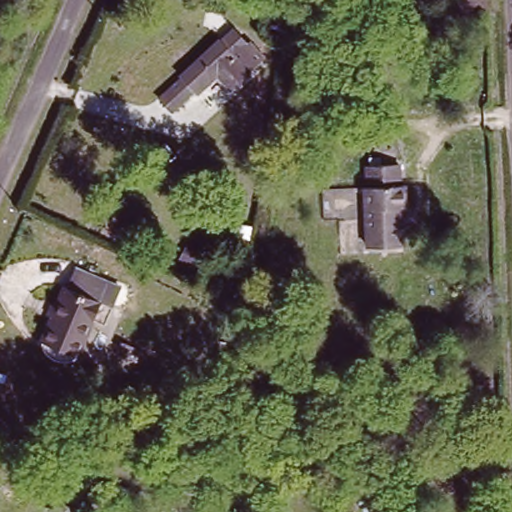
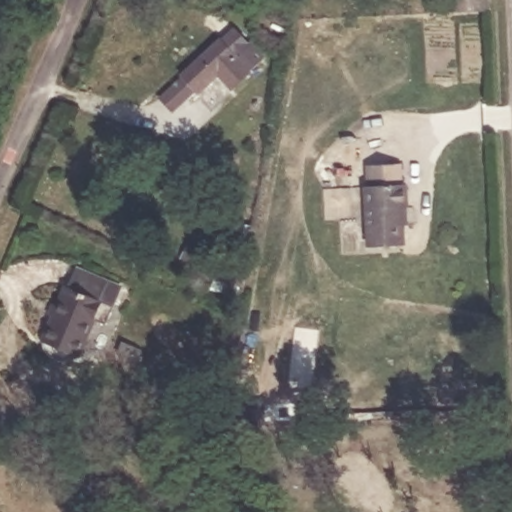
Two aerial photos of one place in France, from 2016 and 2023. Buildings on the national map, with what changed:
unchanged [(451,0),(488,0),(488,14),(451,15),(451,0)]
unchanged [(224,75),(203,94),(199,89),(173,112),(161,100),(186,76),(181,70),(216,40),(219,44),(237,27),(266,59),(235,87),(224,75)]
unchanged [(401,221),(402,241),(369,242),(367,180),(369,180),(369,156),(399,155),(400,180),(405,180),(407,220),(401,221)]
unchanged [(125,283),(110,325),(94,318),(81,353),(44,339),(65,284),(71,286),(78,266),(125,283)]

